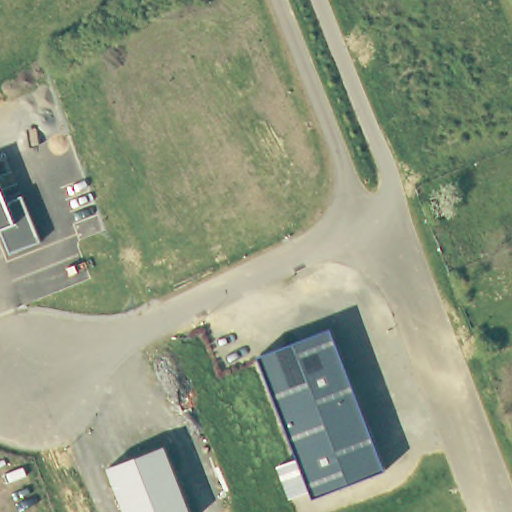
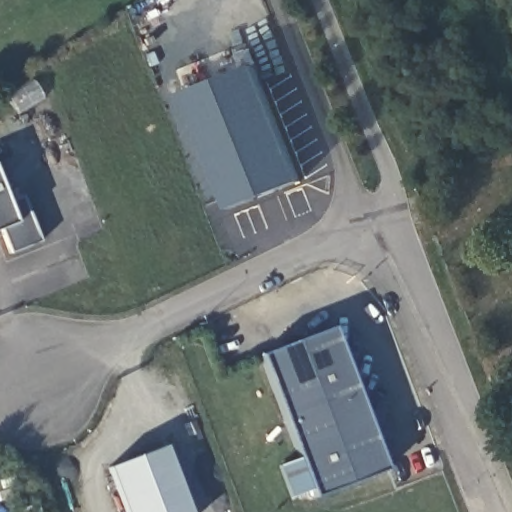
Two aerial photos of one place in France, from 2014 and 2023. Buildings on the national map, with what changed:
new [(250,65),(297,181),(229,209),(181,93),(250,65)]
unchanged [(5,203),(24,195),(40,244),(10,255),(0,229),(0,190),(5,203)]
unchanged [(386,471),(313,499),(257,357),(331,328),(386,471)]
unchanged [(113,470),(169,448),(195,512),(130,512),(113,470)]

